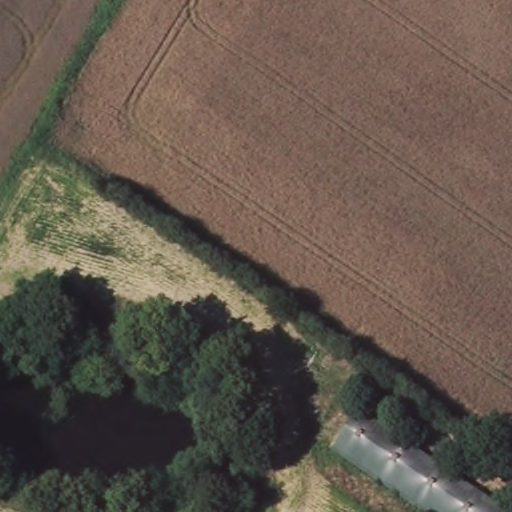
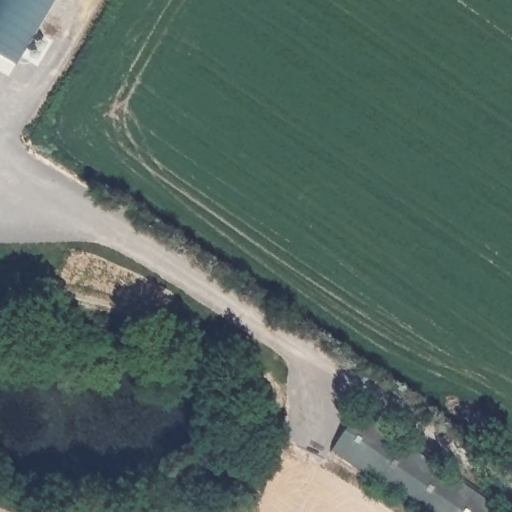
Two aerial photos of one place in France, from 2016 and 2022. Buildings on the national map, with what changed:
new [(0,52),(0,0),(55,0),(17,62),(0,52)]
unchanged [(512,512),(430,512),(340,449),(370,407),(512,507),(512,512)]

